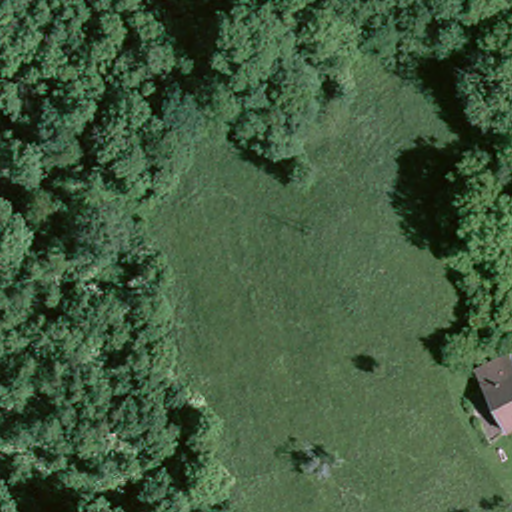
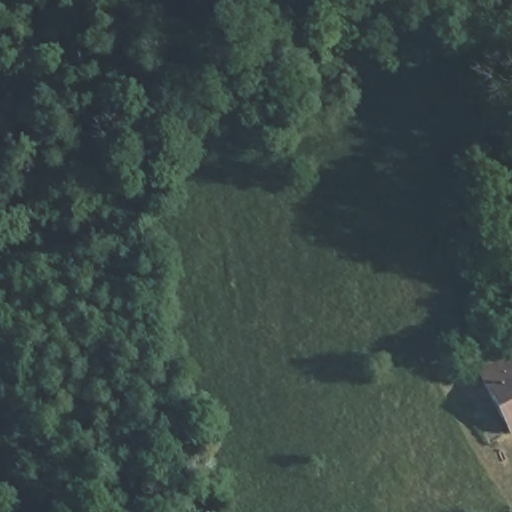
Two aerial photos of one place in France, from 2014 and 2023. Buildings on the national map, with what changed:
unchanged [(478,375),(511,357),(512,359),(512,433),(511,434),(478,375)]

